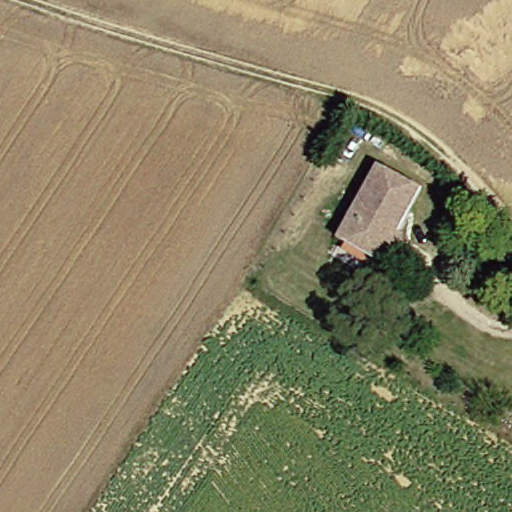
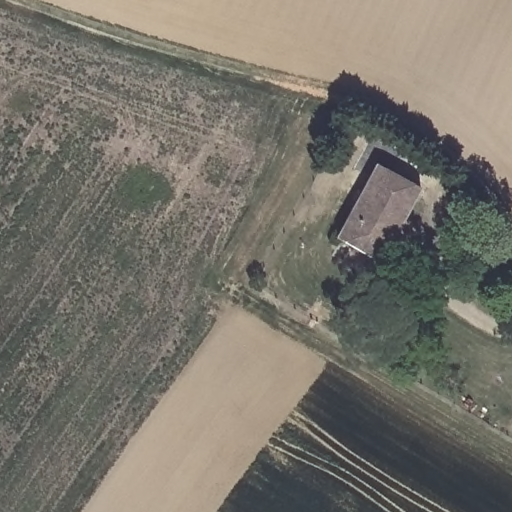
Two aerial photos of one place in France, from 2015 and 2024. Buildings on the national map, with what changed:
unchanged [(389,261),(378,254),(341,232),(384,160),(426,184),(400,230),(404,233),(389,261)]

